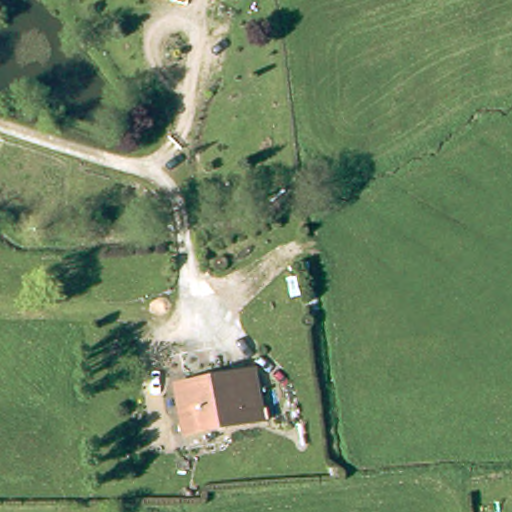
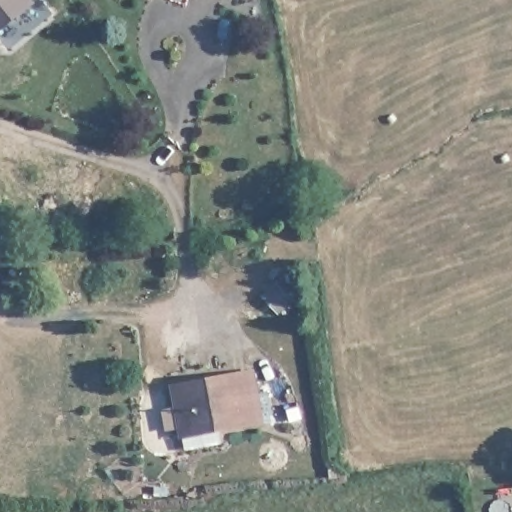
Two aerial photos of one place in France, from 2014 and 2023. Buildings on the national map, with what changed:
new [(36,1),(0,33),(0,0),(35,0),(36,1)]
unchanged [(180,393),(219,386),(218,382),(237,379),(238,382),(253,379),(262,425),(227,432),(226,427),(189,435),(180,393)]

